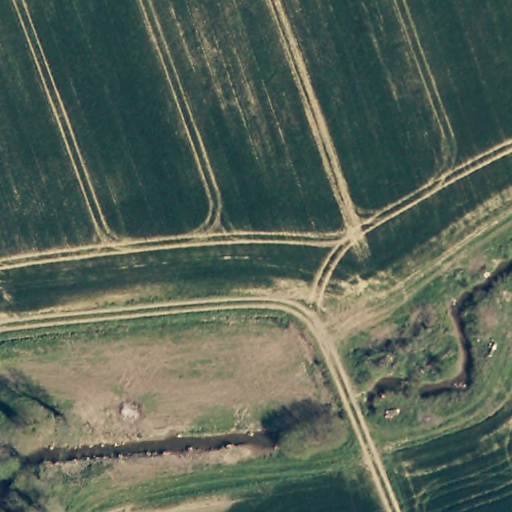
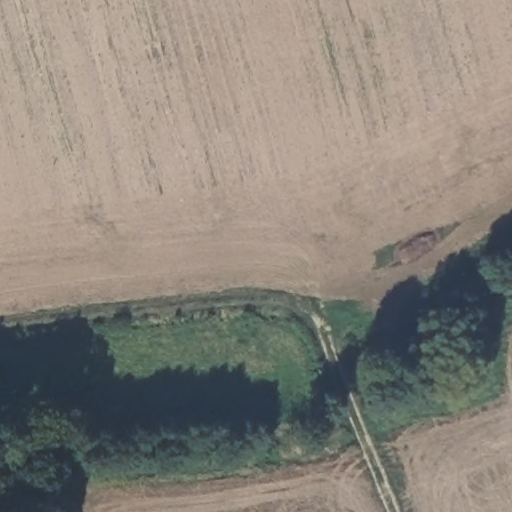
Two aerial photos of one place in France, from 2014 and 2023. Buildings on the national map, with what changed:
[]

